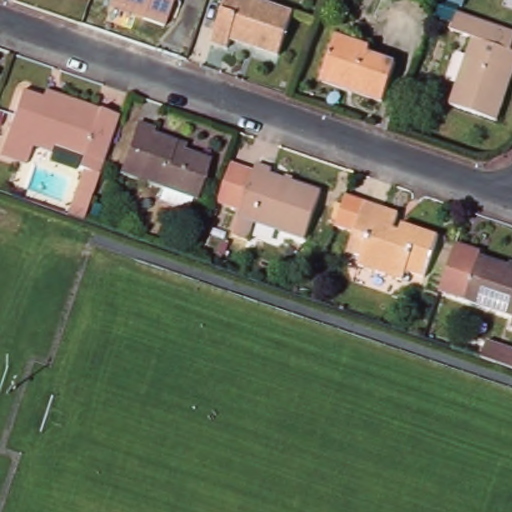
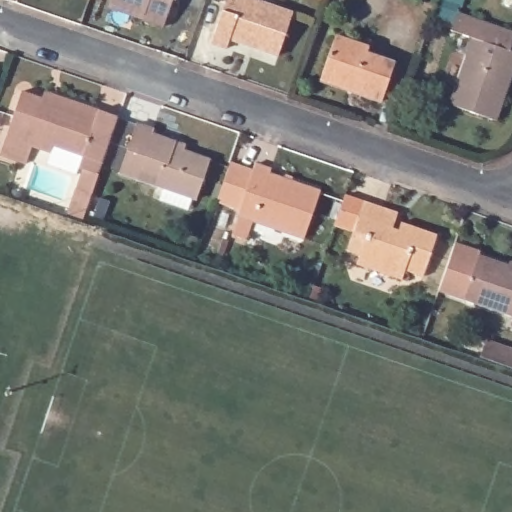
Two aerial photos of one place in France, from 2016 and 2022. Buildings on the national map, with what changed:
unchanged [(113,0),(177,0),(175,5),(174,5),(164,31),(142,24),(109,12),(110,8),(113,0)]
unchanged [(213,0),(225,5),(227,0),(263,0),(262,1),(295,14),(278,56),(230,40),(227,49),(211,44),(216,30),(199,24),(207,0),(213,0)]
unchanged [(477,39),(456,31),(463,12),(512,30),(512,91),(501,121),(455,104),(477,39)]
unchanged [(336,35),(370,46),(367,53),(395,63),(381,102),(353,92),(320,80),(322,74),(336,35)]
unchanged [(66,215),(83,170),(79,169),(83,157),(54,146),(51,154),(32,147),(26,165),(0,155),(22,91),(43,98),(45,91),(65,97),(120,117),(84,221),(66,215)]
unchanged [(203,195),(199,194),(195,206),(165,195),(169,184),(125,169),(142,119),(158,125),(156,130),(180,139),(189,142),(186,150),(215,160),(203,195)]
unchanged [(235,165),(259,172),(261,165),(277,170),(275,175),(326,192),(310,240),(258,221),(251,240),(237,235),(246,210),(222,202),(235,165)]
unchanged [(347,195),(398,212),(390,235),(397,237),(403,224),(438,236),(423,277),(405,271),(402,280),(357,264),(367,236),(336,225),(347,195)]
unchanged [(493,261),(512,268),(512,316),(478,305),(455,297),(467,261),(471,250),(494,257),(493,261)]
unchanged [(487,341),(512,350),(512,374),(479,362),(487,341)]

